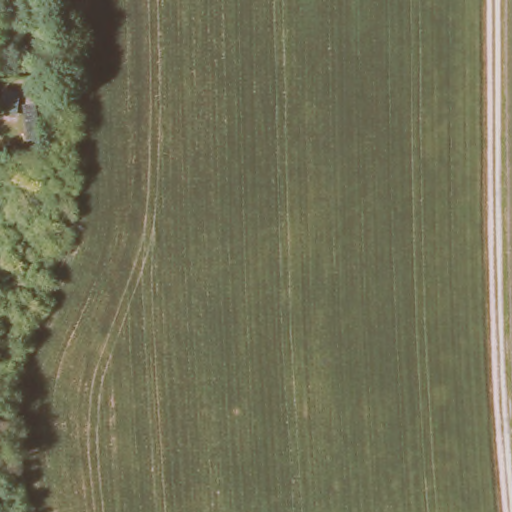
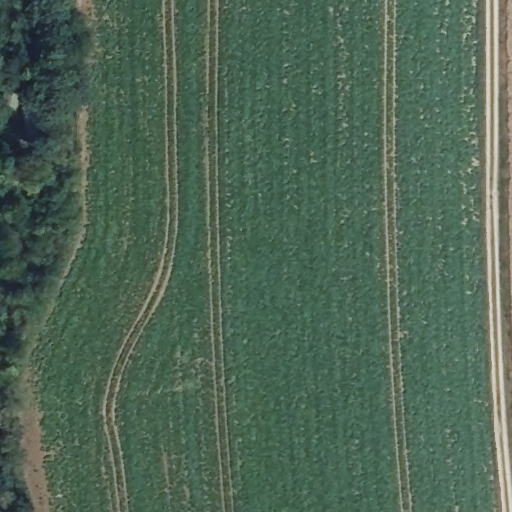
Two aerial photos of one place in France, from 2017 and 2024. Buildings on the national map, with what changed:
unchanged [(40,142),(27,145),(21,111),(37,103),(40,142)]

